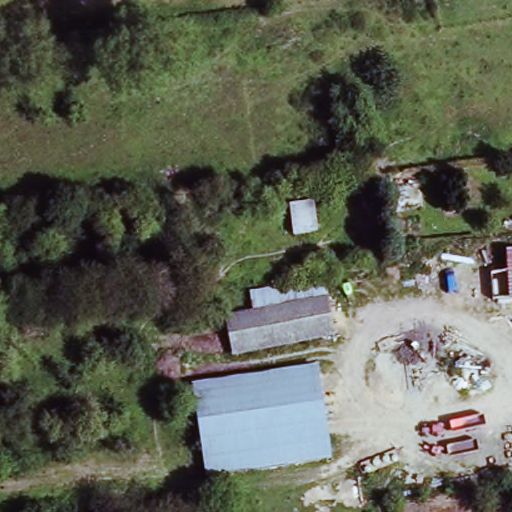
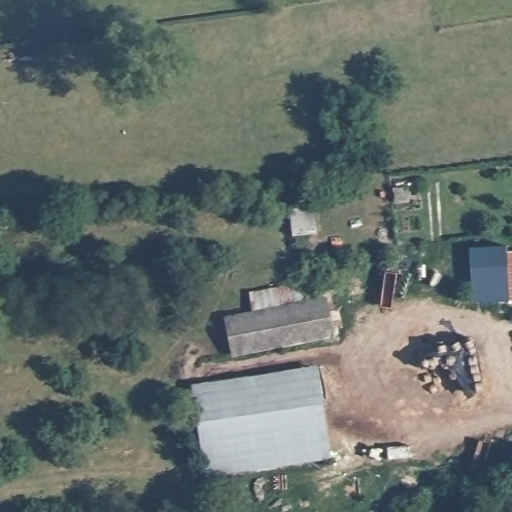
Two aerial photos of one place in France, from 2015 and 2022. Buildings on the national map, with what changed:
unchanged [(313,230),(294,232),(290,202),(310,200),(313,230)]
new [(508,245),(508,249),(510,270),(511,296),(512,300),(472,303),(470,247),(508,245)]
unchanged [(508,249),(512,249),(512,296),(511,296),(510,270),(508,249)]
demolished [(510,270),(511,296),(495,298),(492,272),(510,270)]
unchanged [(325,295),(255,309),(250,290),(321,276),(325,295)]
unchanged [(325,295),(332,332),(235,352),(227,315),(255,309),(325,295)]
unchanged [(193,385),(315,366),(329,453),(240,466),(207,471),(193,385)]

